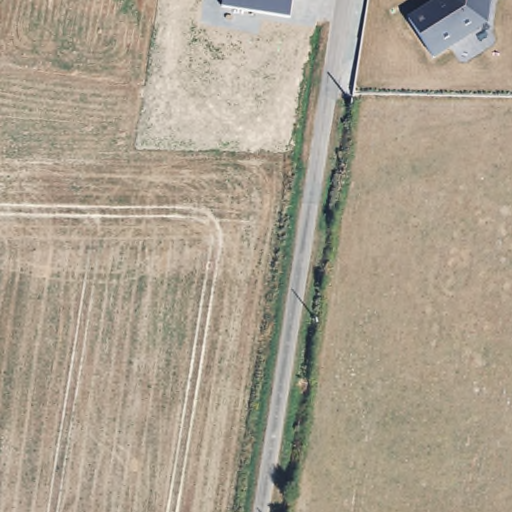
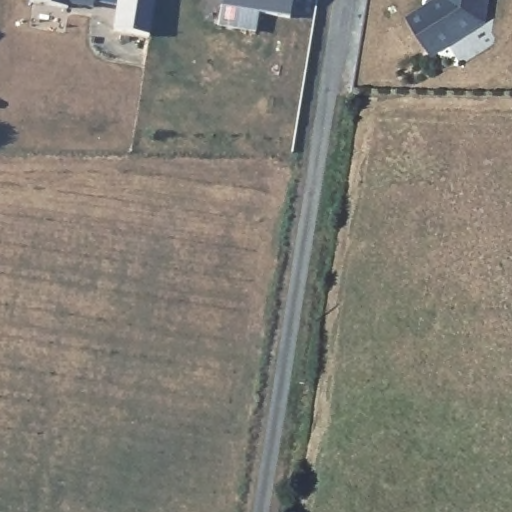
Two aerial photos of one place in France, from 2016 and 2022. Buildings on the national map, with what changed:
new [(112,30),(116,6),(93,3),(92,9),(72,5),(72,9),(31,2),(31,0),(154,0),(149,35),(112,30)]
unchanged [(222,0),(293,0),(290,17),(221,8),(222,0)]
unchanged [(408,20),(434,0),(490,0),(487,24),(433,59),(408,20)]

